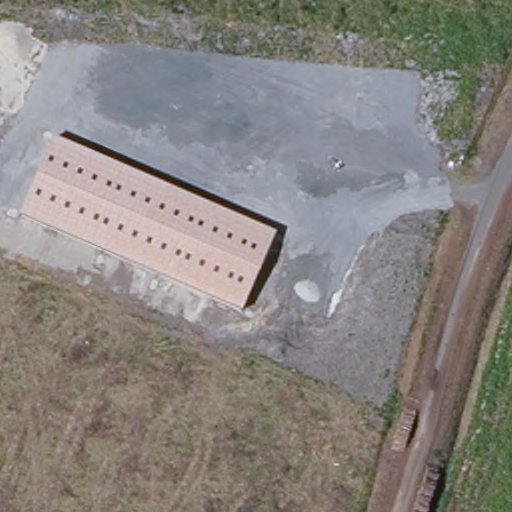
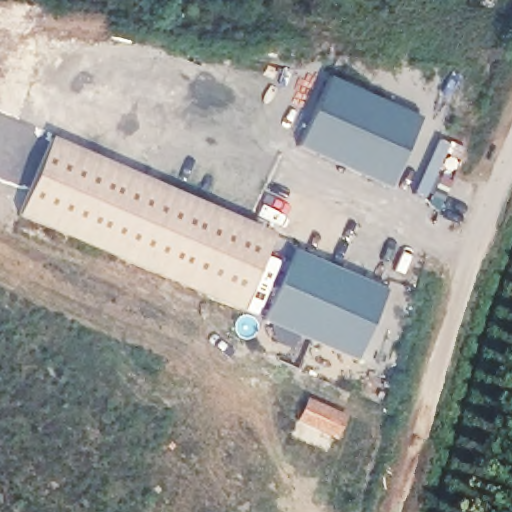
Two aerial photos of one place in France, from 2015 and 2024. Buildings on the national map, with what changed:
new [(299,147),(330,77),(420,118),(388,187),(299,147)]
unchanged [(241,312),(21,215),(54,139),(275,234),(241,312)]
new [(263,321),(295,251),(386,290),(356,360),(263,321)]

